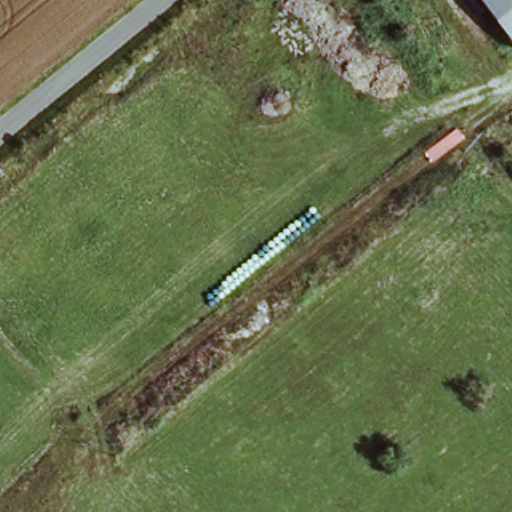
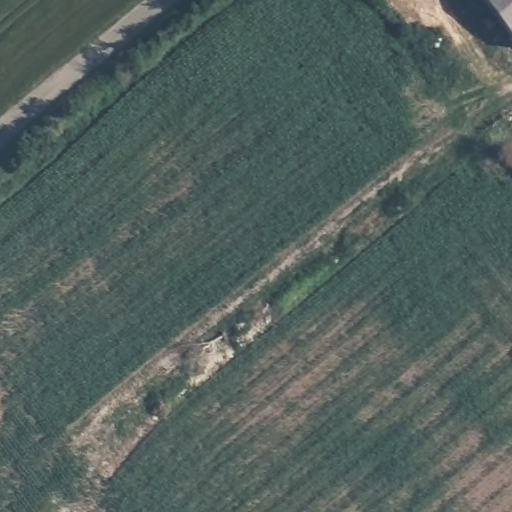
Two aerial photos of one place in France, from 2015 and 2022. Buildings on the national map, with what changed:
unchanged [(512,39),(483,0),(512,0),(512,39)]

